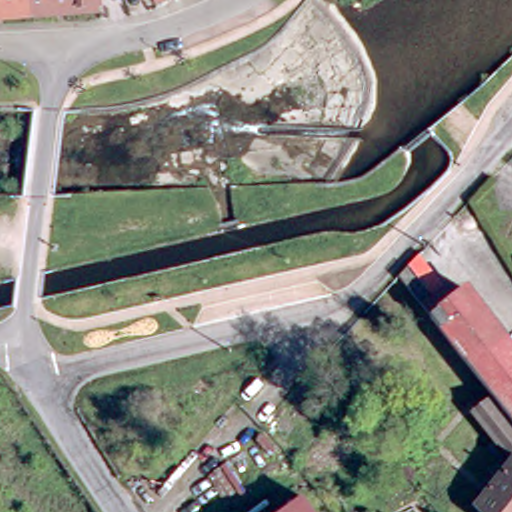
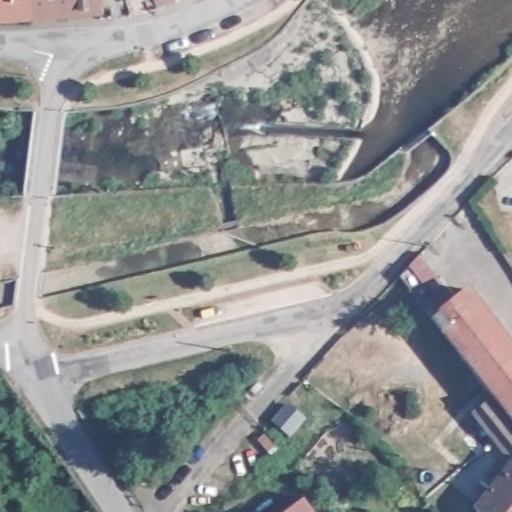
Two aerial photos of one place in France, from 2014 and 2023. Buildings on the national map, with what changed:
unchanged [(0,0),(24,0),(25,13),(0,14),(0,0)]
unchanged [(93,0),(94,6),(87,6),(86,9),(25,13),(24,0),(93,0)]
unchanged [(512,348),(512,421),(489,392),(427,314),(463,287),(512,348)]
unchanged [(473,501),(510,453),(470,408),(489,392),(512,421),(512,512),(483,512),(473,501)]
unchanged [(301,502),(308,512),(287,512),(301,502)]

